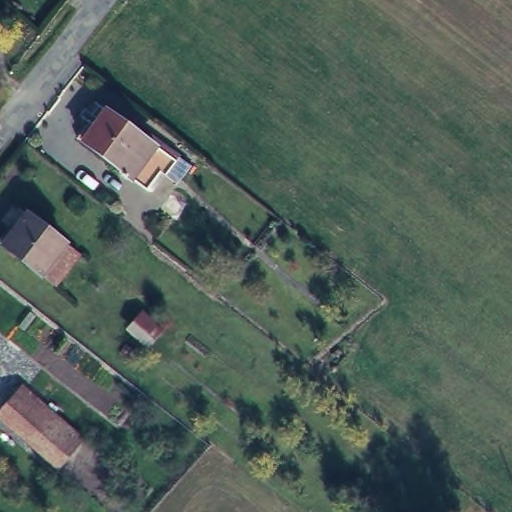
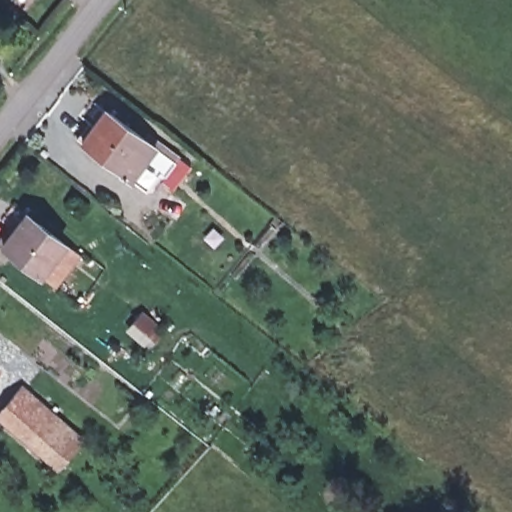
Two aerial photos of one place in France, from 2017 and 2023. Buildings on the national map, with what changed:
unchanged [(103,113),(164,157),(140,189),(79,143),(103,113)]
unchanged [(28,202),(77,239),(53,270),(4,231),(28,202)]
unchanged [(58,471),(38,454),(1,423),(25,395),(63,426),(82,442),(58,471)]

